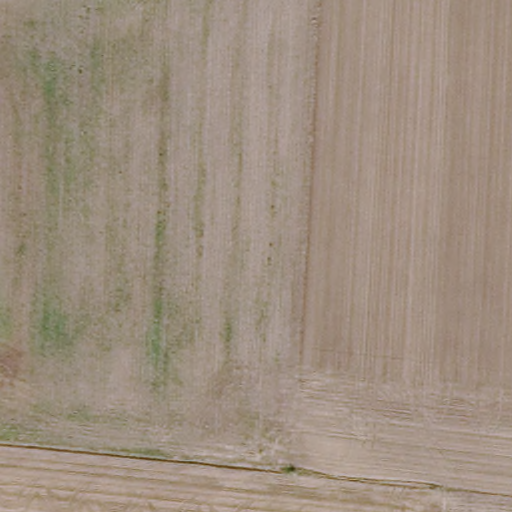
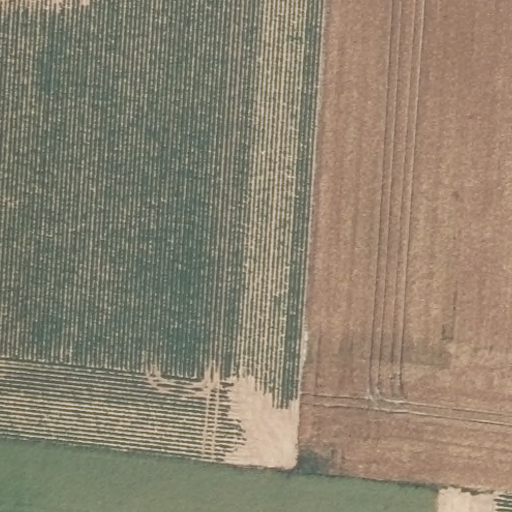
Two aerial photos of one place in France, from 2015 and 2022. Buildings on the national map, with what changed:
[]

